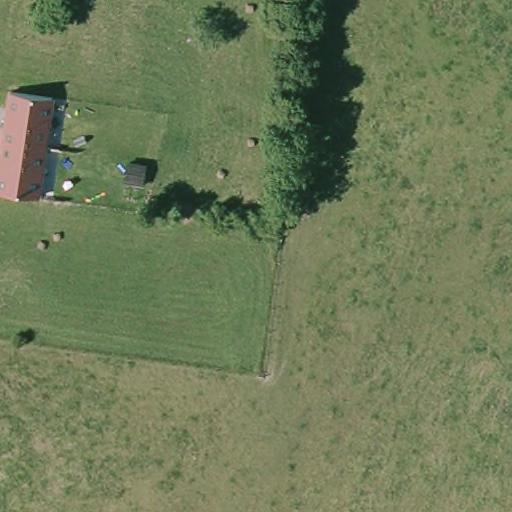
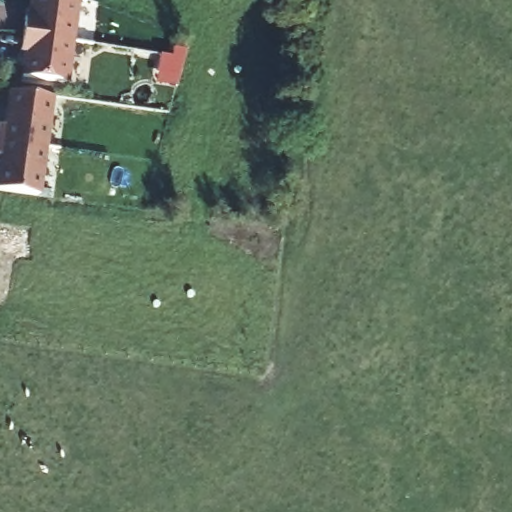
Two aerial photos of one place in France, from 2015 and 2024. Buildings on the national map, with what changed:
new [(23,34),(24,17),(29,19),(32,0),(78,0),(72,42),(23,34)]
new [(72,42),(66,84),(21,77),(25,52),(20,52),(23,34),(72,42)]
unchanged [(53,99),(38,196),(0,191),(0,155),(0,124),(4,125),(8,91),(53,99)]

